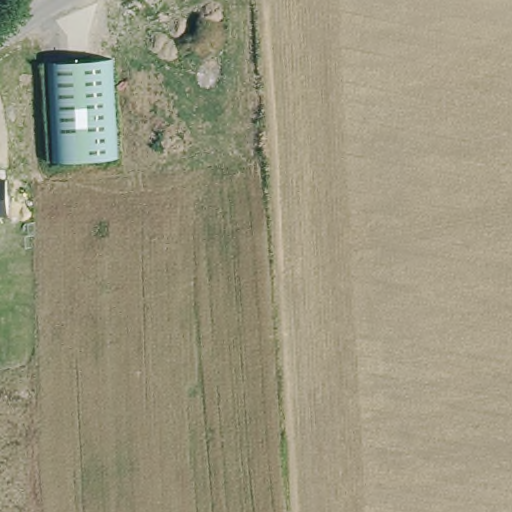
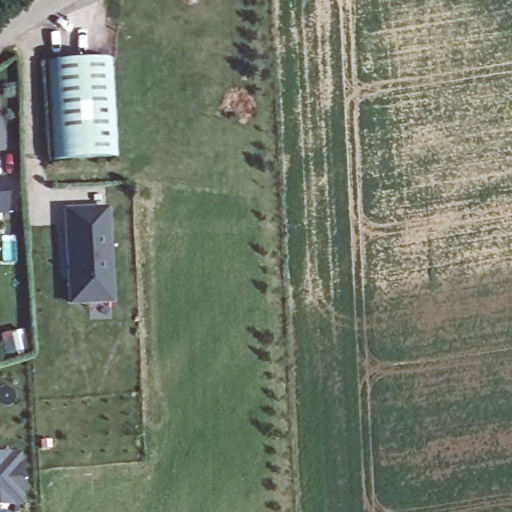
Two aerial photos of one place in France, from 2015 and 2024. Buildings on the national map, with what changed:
unchanged [(122,155),(51,157),(48,56),(116,53),(122,155)]
unchanged [(8,179),(8,215),(0,215),(0,179),(8,179)]
new [(63,208),(109,206),(114,304),(68,307),(63,208)]
new [(5,350),(1,331),(23,327),(27,345),(5,350)]
unchanged [(17,451),(20,500),(0,501),(0,451),(17,451)]

